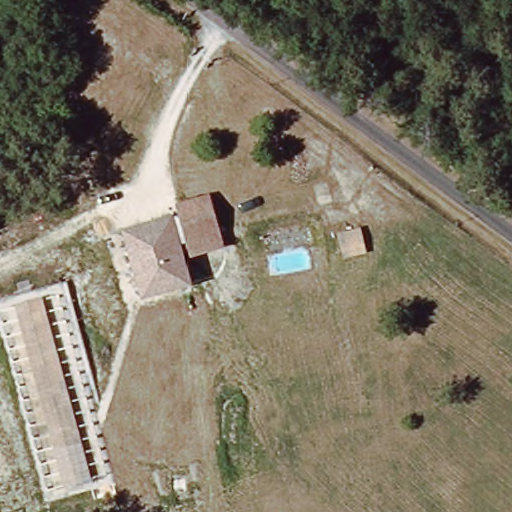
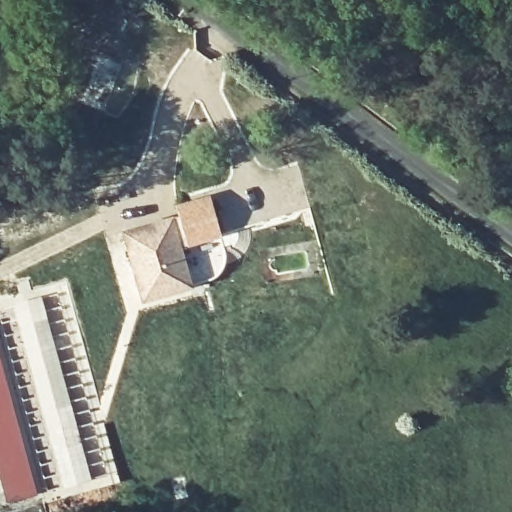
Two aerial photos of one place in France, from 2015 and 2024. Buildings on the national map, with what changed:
unchanged [(219,233),(222,242),(191,254),(187,244),(179,247),(192,285),(147,301),(124,237),(179,217),(175,209),(207,197),(219,233)]
unchanged [(368,230),(375,253),(358,257),(352,235),(368,230)]
unchanged [(92,478),(66,489),(14,307),(44,300),(92,478)]
new [(0,472),(0,355),(38,495),(9,503),(0,472)]

